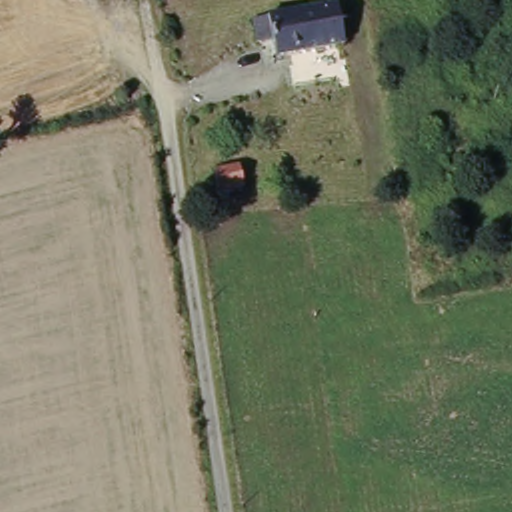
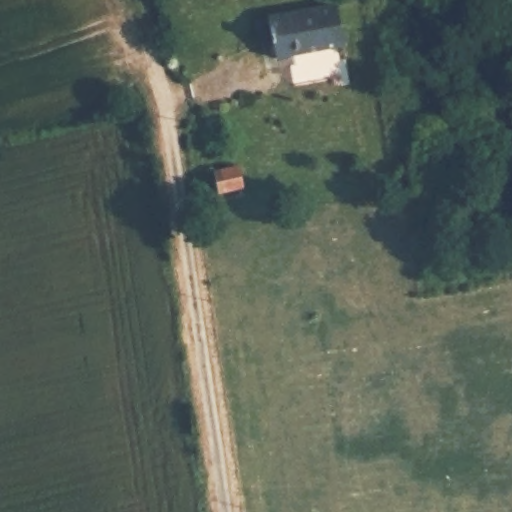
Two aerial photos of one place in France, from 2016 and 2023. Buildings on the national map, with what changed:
unchanged [(288,49),(283,27),(261,32),(258,15),(280,11),(342,1),(349,37),(288,49)]
unchanged [(210,173),(232,169),(236,187),(214,192),(210,173)]

